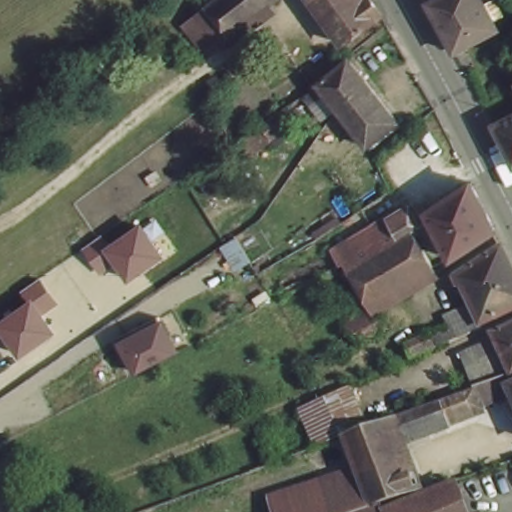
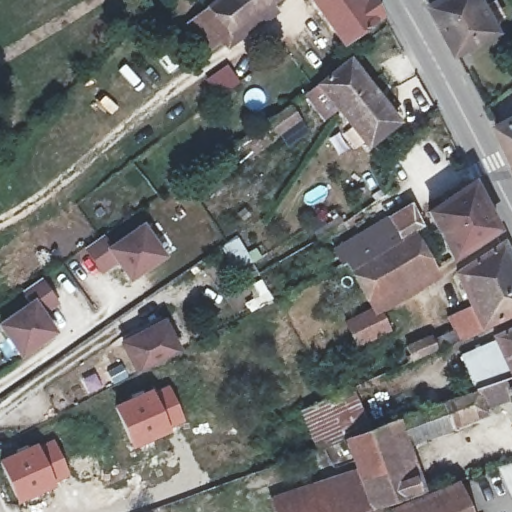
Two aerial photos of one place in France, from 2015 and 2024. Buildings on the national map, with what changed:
unchanged [(206,2),(209,0),(273,0),(229,34),(206,2)]
unchanged [(381,16),(343,43),(310,0),(370,0),(381,16)]
unchanged [(499,32),(456,56),(428,7),(441,0),(480,0),(499,32)]
unchanged [(229,34),(206,52),(181,21),(206,2),(229,34)]
unchanged [(351,95),(366,114),(351,126),(343,116),(319,85),(321,83),(333,73),(351,58),(369,81),(351,95)]
unchanged [(399,121),(366,147),(351,126),(366,114),(351,95),(369,81),(399,121)]
unchanged [(243,162),(228,144),(286,107),(298,127),(243,162)]
unchanged [(509,150),(495,124),(512,116),(512,157),(509,150)]
unchanged [(496,227),(450,256),(428,210),(476,184),(496,227)]
unchanged [(409,228),(375,250),(345,268),(343,269),(335,256),(411,209),(421,230),(413,234),(409,228)]
unchanged [(103,234),(109,243),(141,221),(165,257),(129,281),(115,263),(100,274),(83,248),(103,234)]
unchanged [(375,250),(409,228),(413,234),(434,269),(370,310),(345,268),(375,250)]
unchanged [(460,271),(508,243),(512,252),(512,289),(492,298),(476,305),(460,271)]
unchanged [(58,303),(43,314),(55,332),(20,357),(0,329),(0,321),(31,298),(22,290),(40,277),(58,303)]
unchanged [(488,326),(489,329),(482,332),(418,360),(412,346),(456,325),(452,316),(476,305),(492,298),(512,289),(512,315),(488,326)]
new [(154,310),(157,315),(134,327),(131,322),(154,310)]
unchanged [(183,346),(132,369),(119,337),(166,311),(183,346)]
unchanged [(374,343),(356,352),(345,327),(375,313),(388,336),(374,343)]
unchanged [(471,372),(464,353),(495,339),(493,336),(512,327),(512,375),(504,378),(506,382),(478,392),(471,372)]
unchanged [(482,406),(483,410),(393,444),(385,425),(478,392),(506,382),(510,389),(512,394),(482,406)]
new [(168,383),(186,424),(131,451),(111,405),(168,383)]
unchanged [(344,440),(316,450),(299,412),(316,404),(328,399),(353,387),(373,430),(344,440)]
unchanged [(512,388),(512,394),(510,389),(512,388)]
unchanged [(393,444),(412,497),(371,511),(356,469),(344,440),(373,430),(385,425),(393,444)]
new [(71,477),(16,504),(0,468),(0,459),(53,437),(71,477)]
unchanged [(368,512),(274,512),(269,497),(290,490),(356,469),(371,511),(368,512)]
unchanged [(368,512),(371,511),(412,497),(456,483),(467,512),(368,512)]

